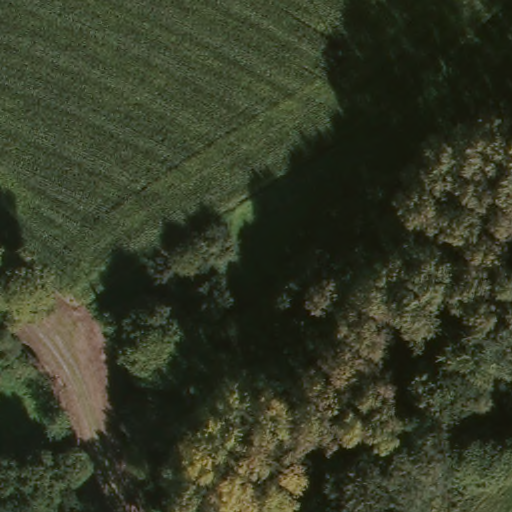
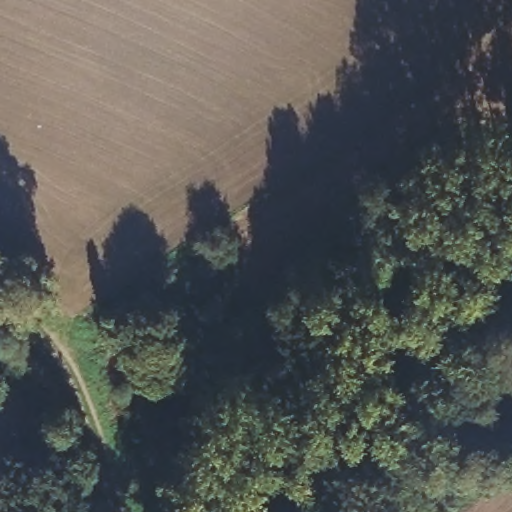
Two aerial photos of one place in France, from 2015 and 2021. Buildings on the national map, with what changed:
unchanged [(161,353),(184,372),(170,390),(147,371),(161,353)]

